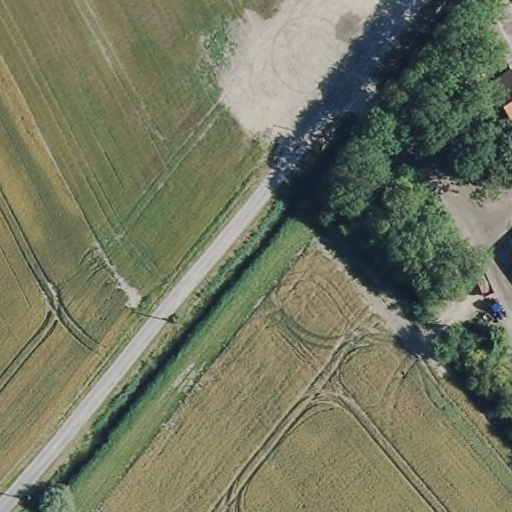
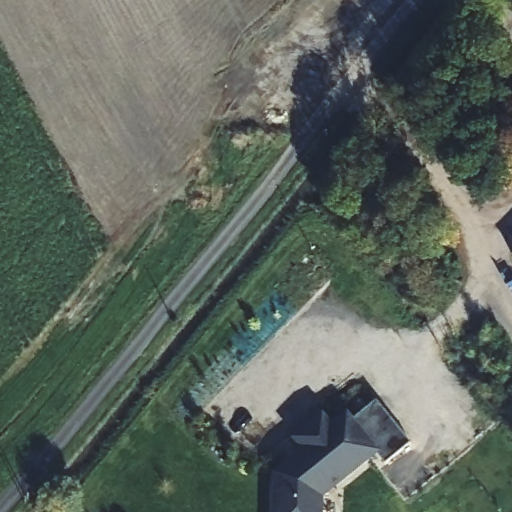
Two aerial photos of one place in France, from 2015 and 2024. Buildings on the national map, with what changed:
unchanged [(510,132),(479,89),(505,70),(512,80),(512,131),(510,132)]
new [(410,444),(385,464),(377,455),(324,499),(324,512),(272,512),(272,474),(300,451),(291,440),(323,414),(332,425),(347,412),(355,421),(377,402),(410,444)]

